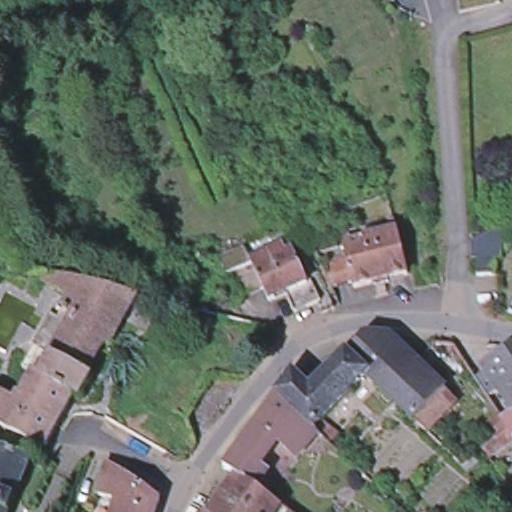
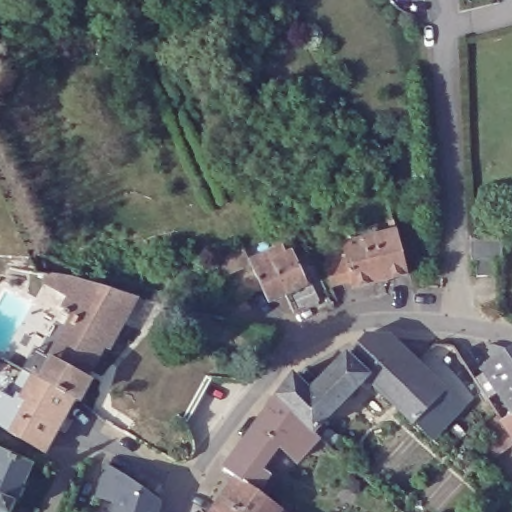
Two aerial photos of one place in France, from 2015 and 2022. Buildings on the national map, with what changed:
unchanged [(478,282),(477,266),(472,266),(471,248),(507,232),(503,263),(496,263),(497,281),(478,282)]
unchanged [(305,291),(288,298),(280,281),(262,288),(256,276),(244,248),(246,247),(275,233),(280,242),(285,239),(300,269),(304,267),(314,287),(305,291)]
unchanged [(244,248),(256,276),(230,287),(213,249),(226,243),(241,236),(246,247),(244,248)]
unchanged [(346,250),(400,236),(410,280),(358,293),(346,250)]
unchanged [(90,287),(142,305),(119,340),(121,342),(113,355),(108,351),(90,382),(53,362),(77,318),(67,312),(73,302),(63,297),(60,295),(66,282),(69,283),(71,283),(90,287)]
unchanged [(346,356),(365,336),(387,336),(446,391),(413,423),(365,378),(367,377),(346,356)]
unchanged [(503,392),(487,368),(512,350),(512,386),(503,392)]
unchanged [(38,381),(26,374),(37,353),(53,362),(90,382),(96,386),(85,407),(78,403),(78,405),(61,433),(48,456),(0,428),(0,402),(20,412),(38,381)]
unchanged [(330,447),(318,436),(297,462),(276,443),(290,423),(270,407),(277,396),(293,376),(311,392),(346,356),(367,377),(365,378),(322,424),(338,438),(330,447)]
unchanged [(184,420),(142,397),(164,357),(206,381),(184,420)]
unchanged [(503,392),(512,386),(512,404),(503,392)]
unchanged [(498,396),(501,402),(498,404),(494,398),(498,396)]
unchanged [(237,480),(236,481),(235,480),(225,471),(239,450),(270,407),(290,423),(276,443),(256,471),(265,477),(255,492),(254,491),(237,480)]
unchanged [(490,430),(505,417),(508,422),(509,421),(512,419),(512,432),(500,442),(490,430)]
unchanged [(0,450),(30,464),(11,512),(0,512),(0,450)]
unchanged [(157,512),(115,512),(117,506),(96,498),(107,465),(126,477),(160,502),(157,512)]
unchanged [(254,491),(239,512),(212,512),(235,480),(236,481),(237,480),(254,491)]
unchanged [(510,488),(512,488),(512,491),(510,488)]
unchanged [(281,512),(239,512),(254,491),(255,492),(282,511),(281,512)]

